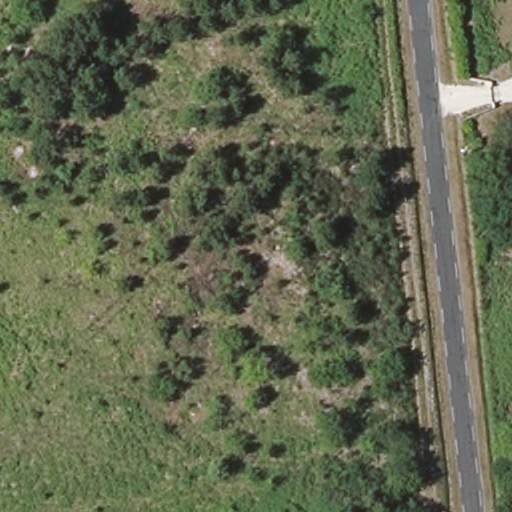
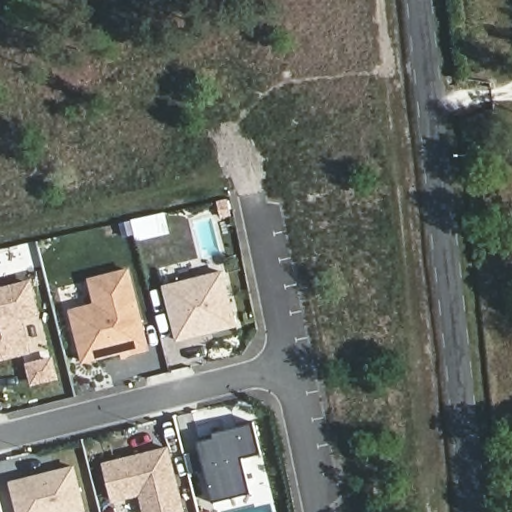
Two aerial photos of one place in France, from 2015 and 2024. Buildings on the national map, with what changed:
new [(70,309),(96,304),(90,278),(130,268),(152,351),(85,366),(70,309)]
new [(225,270),(240,328),(178,342),(165,287),(225,270)]
new [(40,315),(25,319),(32,352),(0,360),(0,289),(34,281),(40,315)]
new [(216,439),(216,433),(257,426),(262,452),(244,456),(252,492),(217,501),(202,442),(216,439)]
new [(170,446),(185,508),(168,512),(148,512),(144,495),(112,500),(107,463),(170,446)]
new [(76,466),(86,511),(84,512),(19,512),(11,483),(76,466)]
new [(0,498),(3,512),(0,512),(0,498)]

